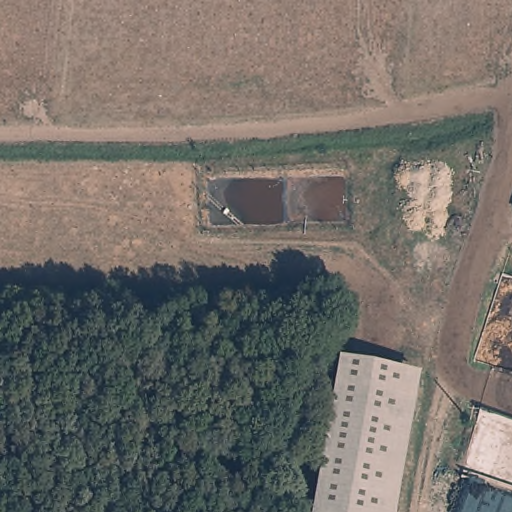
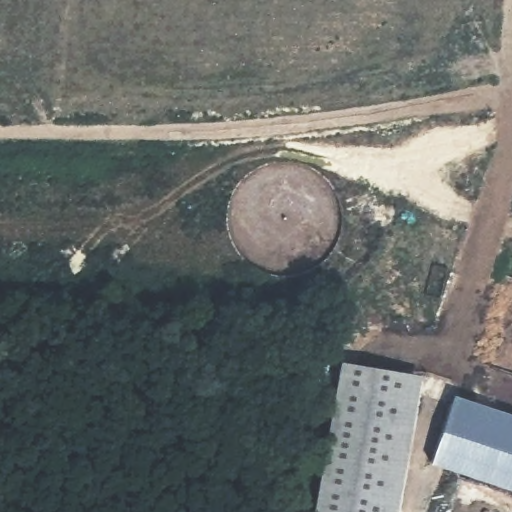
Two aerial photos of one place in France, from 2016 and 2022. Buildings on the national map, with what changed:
unchanged [(416,375),(391,509),(391,512),(310,512),(338,361),(416,375)]
new [(452,395),(512,415),(512,491),(430,463),(452,395)]

